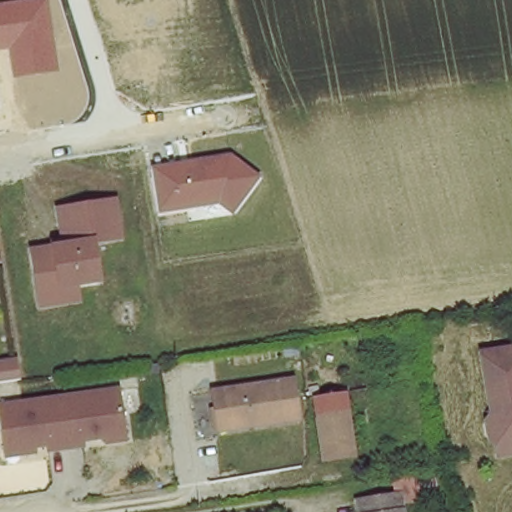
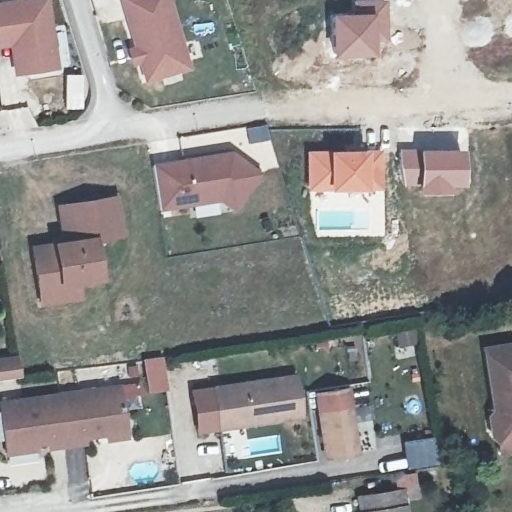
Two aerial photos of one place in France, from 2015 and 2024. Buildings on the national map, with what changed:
unchanged [(47,0),(58,70),(14,76),(9,48),(0,49),(0,2),(9,0),(47,0)]
new [(143,83),(138,66),(131,68),(124,47),(131,45),(118,0),(170,0),(191,69),(143,83)]
new [(351,0),(386,0),(387,41),(373,41),(373,54),(332,56),(329,13),(351,12),(351,0)]
new [(462,148),(462,187),(449,187),(449,192),(417,192),(417,188),(404,189),(399,148),(462,148)]
unchanged [(230,150),(261,174),(234,212),(221,203),(161,212),(153,163),(230,150)]
new [(306,151),(375,150),(376,184),(306,187),(306,151)]
unchanged [(121,235),(97,239),(102,281),(79,282),(82,302),(35,307),(24,242),(56,238),(50,201),(112,193),(121,235)]
unchanged [(501,449),(499,438),(492,433),(489,415),(494,408),(483,346),(512,341),(512,447),(501,449)]
unchanged [(293,373),(298,410),(283,412),(283,415),(217,425),(211,386),(293,373)]
unchanged [(321,409),(317,388),(348,383),(351,404),(358,449),(329,454),(321,409)]
unchanged [(123,432),(80,438),(81,443),(45,448),(44,442),(2,448),(0,433),(0,403),(118,387),(123,432)]
unchanged [(404,491),(407,512),(362,512),(361,497),(404,491)]

